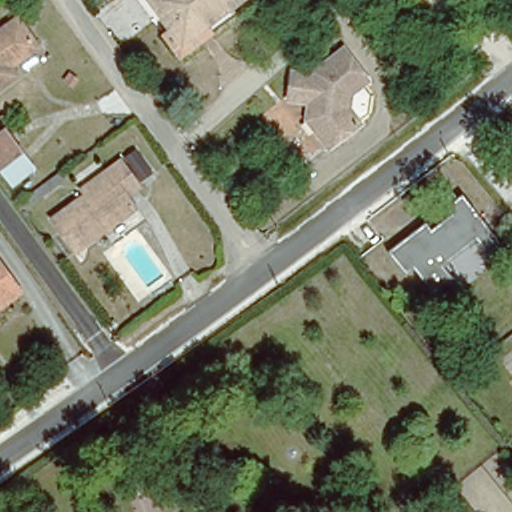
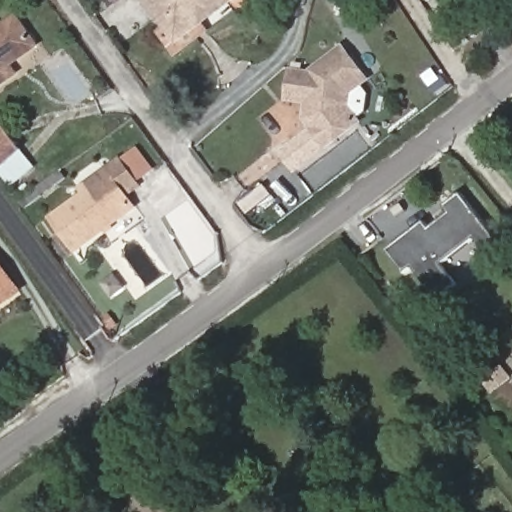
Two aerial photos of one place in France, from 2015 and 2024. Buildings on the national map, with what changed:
unchanged [(231,0),(180,37),(152,0),(231,0)]
unchanged [(17,12),(37,41),(10,61),(16,70),(0,81),(0,24),(17,12)]
unchanged [(358,114),(348,121),(352,125),(321,151),(308,135),(310,122),(300,112),(301,105),(280,102),(281,76),(302,77),(303,74),(331,50),(357,80),(353,82),(361,92),(358,114)]
unchanged [(5,127),(22,150),(0,167),(0,130),(5,127)]
unchanged [(132,176),(119,186),(128,198),(70,241),(48,210),(80,186),(75,180),(101,161),(114,152),(132,176)]
unchanged [(480,250),(473,241),(443,267),(452,278),(432,292),(411,267),(405,273),(386,251),(425,221),(432,230),(456,213),(448,203),(463,192),(496,236),(480,250)]
unchanged [(18,291),(0,304),(0,266),(18,291)]

